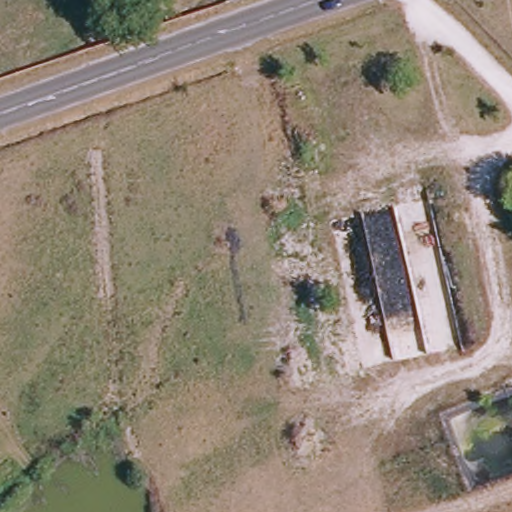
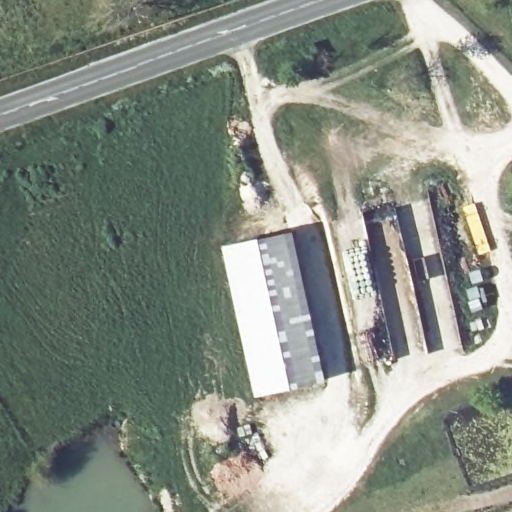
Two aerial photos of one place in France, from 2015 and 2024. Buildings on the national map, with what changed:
new [(292,231),(324,380),(254,397),(223,248),(292,231)]

